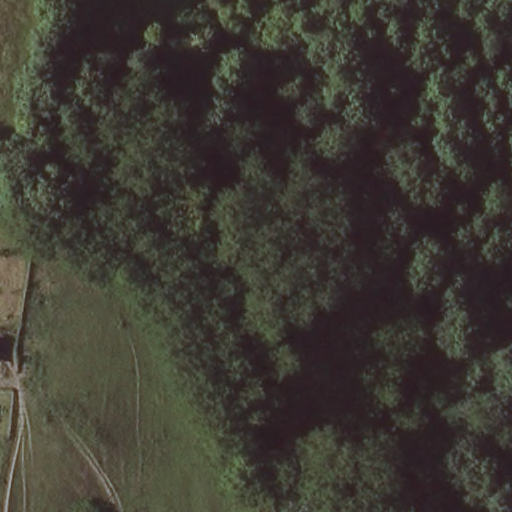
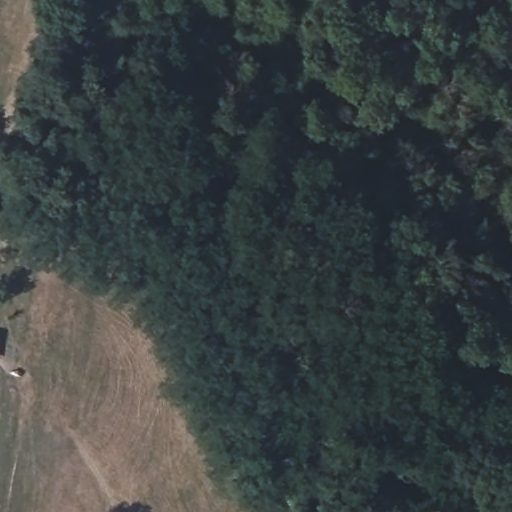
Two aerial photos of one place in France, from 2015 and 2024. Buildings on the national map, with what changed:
unchanged [(0,346),(0,338),(2,338),(0,346)]

